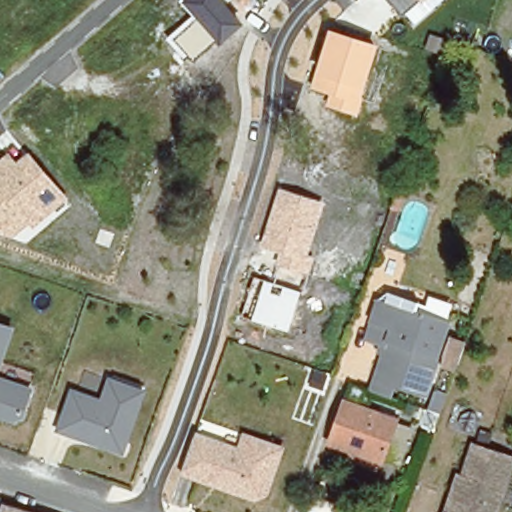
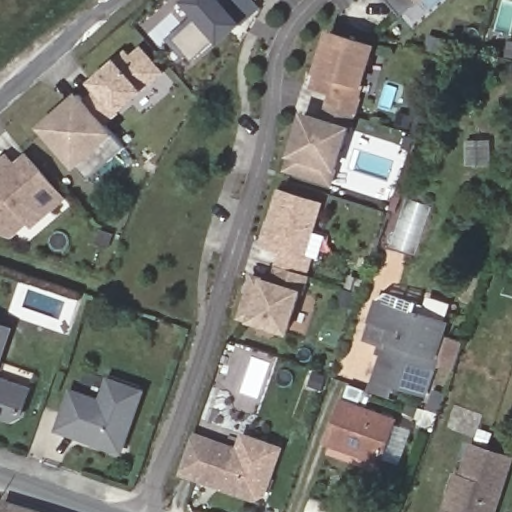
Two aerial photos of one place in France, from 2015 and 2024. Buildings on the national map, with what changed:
unchanged [(227,3),(244,22),(220,44),(217,40),(194,60),(189,54),(184,58),(166,38),(194,14),(184,2),(187,0),(230,0),(227,3)]
unchanged [(416,24),(405,12),(403,14),(390,0),(444,0),(416,24)]
unchanged [(362,96),(365,98),(359,114),(326,106),(330,93),(312,88),(330,29),(379,43),(362,96)]
new [(80,90),(86,99),(98,89),(91,81),(118,59),(128,50),(131,54),(143,44),(166,72),(145,90),(106,122),(116,133),(113,135),(126,147),(89,180),(76,169),(39,126),(80,90)]
new [(290,155),(304,111),(351,127),(336,170),(332,186),(286,171),(290,155)]
unchanged [(28,222),(15,236),(0,232),(0,159),(8,152),(17,161),(29,152),(68,198),(34,228),(28,222)]
unchanged [(308,255),(314,258),(309,274),(275,265),(280,252),(261,246),(279,188),(326,202),(308,255)]
unchanged [(460,294),(474,256),(487,260),(474,298),(460,294)]
unchanged [(289,331),(241,316),(254,277),(303,292),(289,331)]
unchanged [(367,338),(383,293),(417,306),(415,313),(401,308),(388,346),(367,338)]
unchanged [(371,396),(370,395),(375,381),(388,346),(401,308),(415,313),(450,325),(437,362),(440,364),(426,399),(397,389),(392,403),(371,396)]
unchanged [(0,416),(0,322),(15,328),(1,376),(33,386),(21,423),(0,416)]
unchanged [(441,370),(443,359),(450,340),(465,346),(455,375),(441,370)]
unchanged [(126,454),(57,432),(71,389),(100,398),(108,376),(149,390),(126,454)]
unchanged [(400,471),(383,465),(382,467),(330,449),(345,407),(352,389),(367,395),(368,395),(362,413),(397,425),(396,426),(414,432),(400,471)]
unchanged [(428,415),(435,396),(446,400),(439,419),(428,415)]
unchanged [(269,496),(258,503),(181,476),(198,434),(237,447),(243,433),(285,447),(269,496)]
unchanged [(463,476),(475,442),(512,456),(512,464),(495,512),(445,512),(458,475),(463,476)]
unchanged [(346,511),(345,512),(310,512),(314,500),(346,511)]
unchanged [(0,512),(0,503),(26,512),(0,512)]

